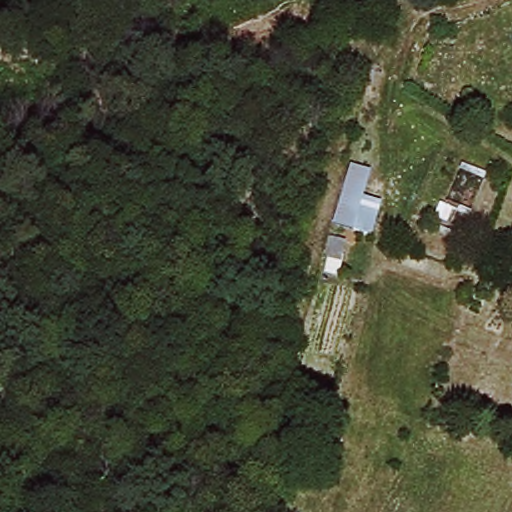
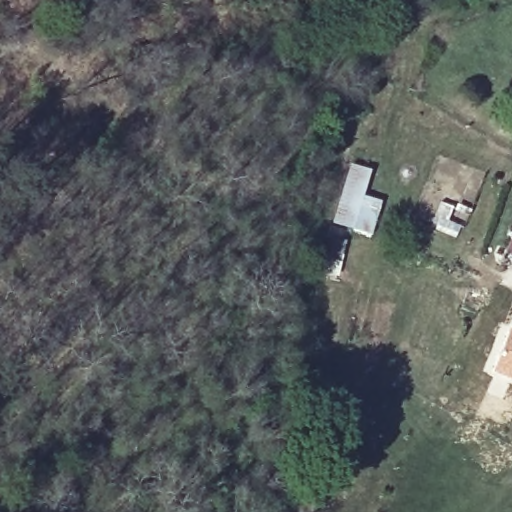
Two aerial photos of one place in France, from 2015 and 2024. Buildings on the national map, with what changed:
unchanged [(346,164),(366,169),(359,195),(379,201),(370,235),(331,226),(346,164)]
unchanged [(440,195),(469,207),(460,233),(429,221),(440,195)]
unchanged [(512,234),(512,255),(505,252),(512,234)]
new [(512,332),(512,383),(492,373),(508,330),(512,332)]

